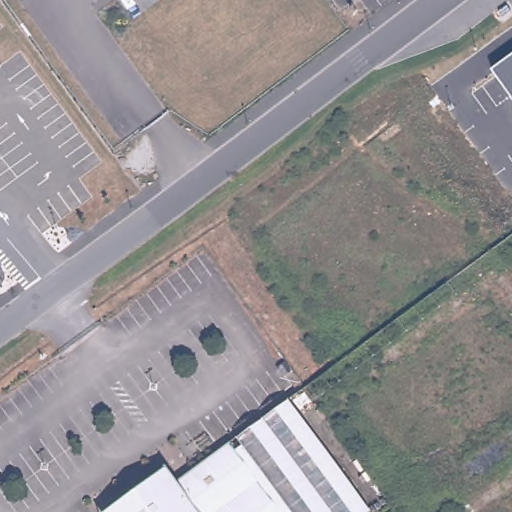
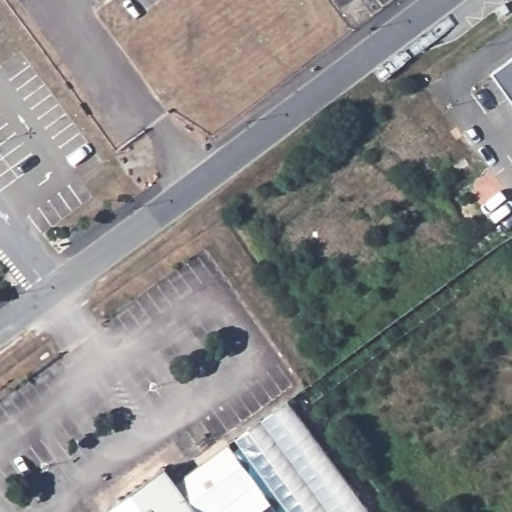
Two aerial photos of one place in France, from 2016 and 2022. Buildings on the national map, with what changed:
unchanged [(493,71),(512,57),(512,97),(493,71)]
unchanged [(369,512),(275,512),(226,444),(288,399),(369,512)]
unchanged [(163,466),(174,481),(226,444),(275,512),(125,512),(117,500),(163,466)]

